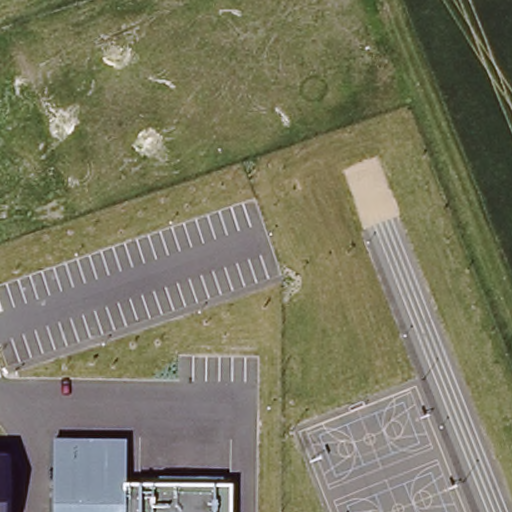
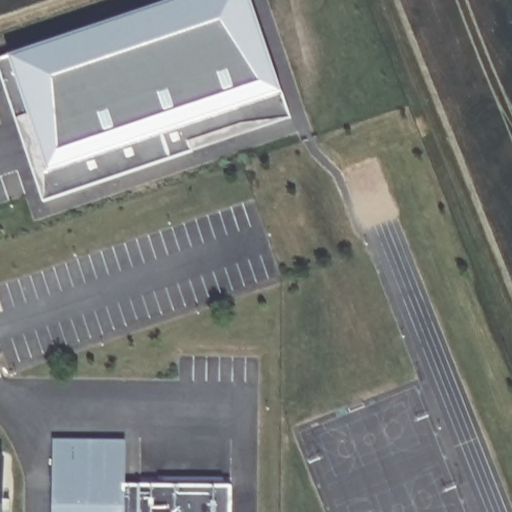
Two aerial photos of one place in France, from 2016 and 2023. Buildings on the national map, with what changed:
new [(178,0),(252,0),(285,93),(292,117),(246,121),(187,141),(191,151),(43,201),(0,75),(0,59),(12,56),(178,0)]
demolished [(80,239),(15,262),(0,219),(0,138),(7,135),(0,113),(0,111),(30,101),(80,239)]
unchanged [(52,439),(123,439),(124,483),(230,485),(230,512),(50,512),(52,439)]
unchanged [(2,458),(4,512),(0,512),(0,457),(2,458)]

